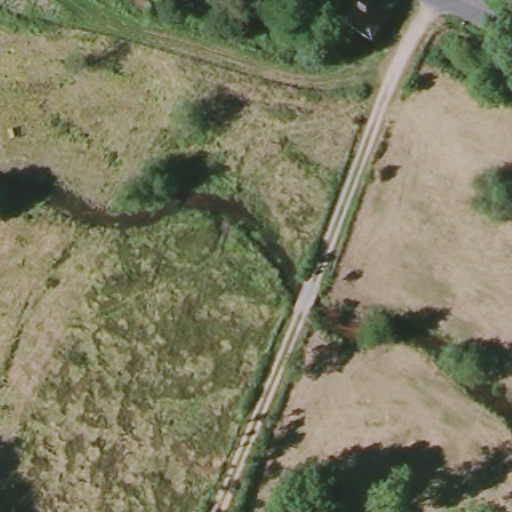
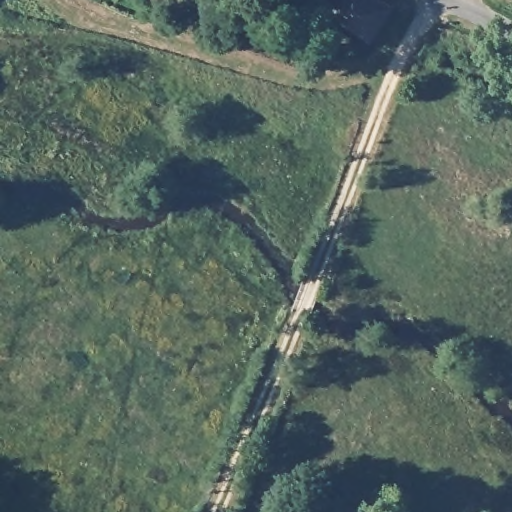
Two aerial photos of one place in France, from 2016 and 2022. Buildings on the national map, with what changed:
unchanged [(366,38),(323,16),(330,4),(332,0),(375,0),(385,5),(366,38)]

